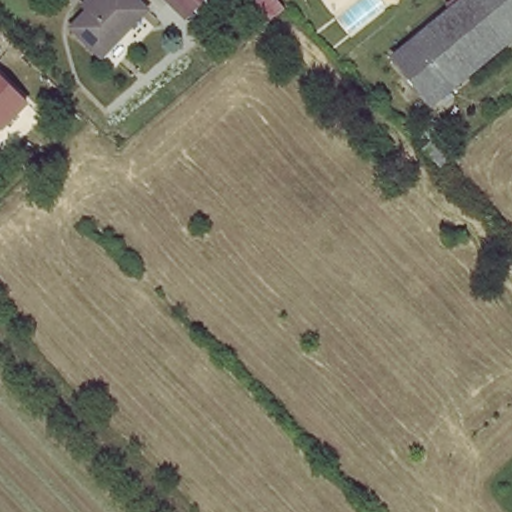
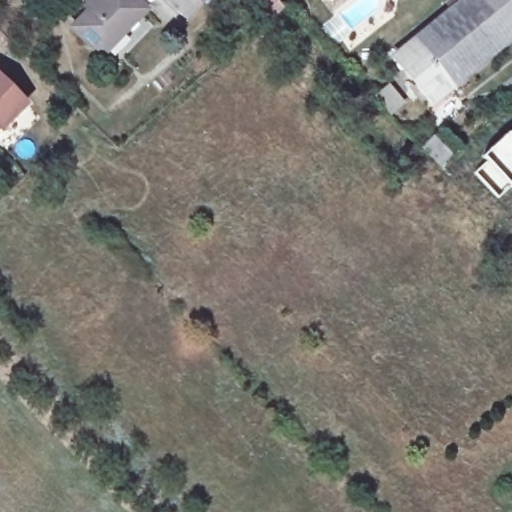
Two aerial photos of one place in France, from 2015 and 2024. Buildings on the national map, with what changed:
unchanged [(101,58),(72,28),(87,13),(82,6),(88,0),(137,0),(148,11),(101,58)]
unchanged [(168,0),(206,0),(187,19),(168,0)]
unchanged [(278,0),(265,11),(253,0),(278,0)]
unchanged [(463,0),(512,0),(512,36),(452,88),(414,41),(463,0)]
unchanged [(434,103),(396,57),(414,41),(452,88),(434,103)]
unchanged [(0,123),(0,76),(23,99),(0,123)]
new [(473,172),(486,159),(482,155),(510,129),(512,131),(512,132),(512,188),(499,199),(473,172)]
new [(512,131),(512,133),(511,131),(510,129),(512,131)]
unchanged [(451,157),(440,166),(426,151),(436,142),(451,157)]

